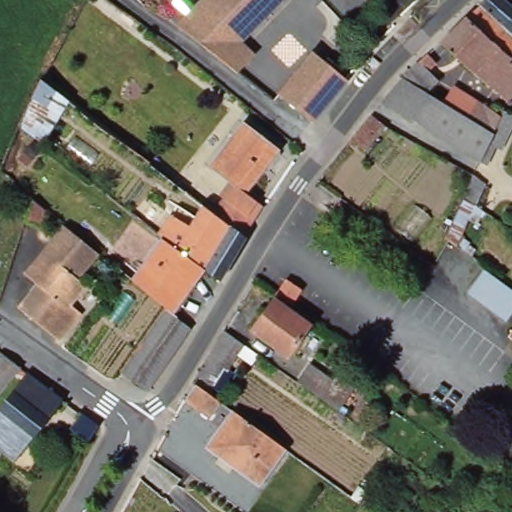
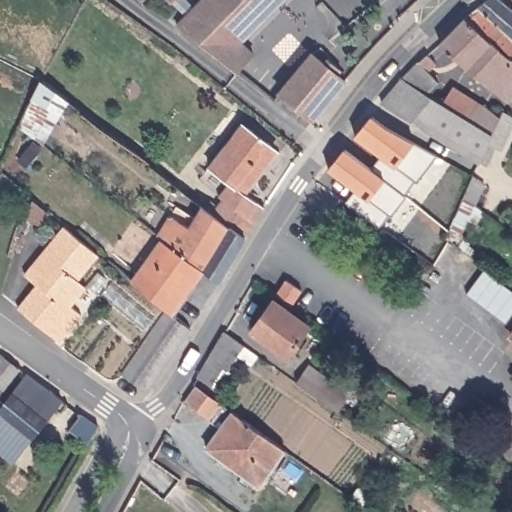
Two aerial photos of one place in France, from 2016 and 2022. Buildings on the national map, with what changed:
unchanged [(173,0),(170,4),(165,0),(173,0)]
unchanged [(201,0),(280,0),(240,40),(255,53),(239,73),(177,24),(201,0)]
unchanged [(466,17),(480,5),(486,0),(503,0),(512,7),(512,95),(508,101),(468,69),(441,43),(466,17)]
unchanged [(315,119),(281,92),(313,51),(346,78),(315,119)]
unchanged [(480,161),(425,131),(413,118),(403,116),(382,101),(403,77),(420,60),(428,53),(438,63),(430,70),(441,81),(430,93),(445,103),(493,133),(486,147),(494,151),(490,159),(484,172),(476,168),(480,161)]
unchanged [(41,80),(72,102),(50,145),(22,124),(41,80)]
unchanged [(445,103),(455,87),(483,106),(484,105),(501,116),(493,133),(445,103)]
new [(343,201),(355,191),(327,170),(344,149),(368,167),(380,156),(354,137),(371,115),(435,154),(416,181),(411,177),(401,192),(404,196),(390,215),(386,213),(380,228),(343,201)]
demolished [(371,156),(356,145),(377,119),(392,131),(371,156)]
unchanged [(207,210),(212,204),(217,208),(235,188),(211,170),(244,127),(280,154),(281,159),(270,174),(265,174),(261,171),(244,195),(263,211),(245,239),(207,210)]
unchanged [(486,183),(477,207),(486,210),(471,238),(480,247),(473,253),(450,239),(474,177),(486,183)]
unchanged [(40,202),(52,212),(47,227),(34,223),(40,202)]
unchanged [(220,285),(203,272),(186,260),(170,247),(163,242),(159,238),(178,206),(199,219),(205,209),(207,210),(245,239),(246,241),(220,285)]
unchanged [(75,231),(101,252),(80,278),(89,285),(75,302),(85,312),(63,339),(21,305),(34,291),(36,294),(40,290),(39,284),(25,272),(66,223),(75,231)]
unchanged [(173,317),(134,284),(163,242),(170,247),(186,260),(203,272),(173,317)]
unchanged [(508,322),(470,293),(488,269),(511,286),(512,287),(512,317),(508,322)]
unchanged [(275,294),(286,278),(301,288),(290,304),(275,294)]
unchanged [(288,354),(254,329),(275,299),(310,325),(288,354)]
unchanged [(125,377),(142,352),(150,339),(159,328),(167,314),(191,332),(149,394),(139,387),(125,377)]
unchanged [(199,380),(225,334),(246,349),(230,374),(225,371),(213,390),(199,380)]
unchanged [(24,368),(0,398),(0,357),(3,353),(24,368)]
unchanged [(303,382),(315,365),(340,382),(342,378),(359,389),(343,411),(303,382)]
unchanged [(16,460),(0,448),(0,411),(31,373),(65,398),(16,460)]
unchanged [(210,422),(187,405),(199,389),(222,405),(210,422)]
unchanged [(260,485),(208,447),(235,410),(287,448),(260,485)]
unchanged [(107,431),(95,447),(76,433),(90,418),(107,431)]

